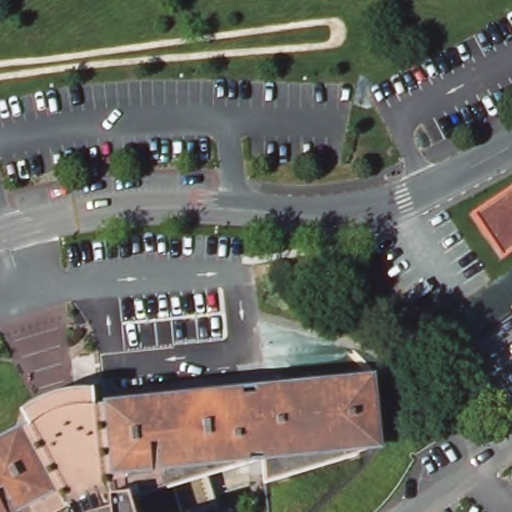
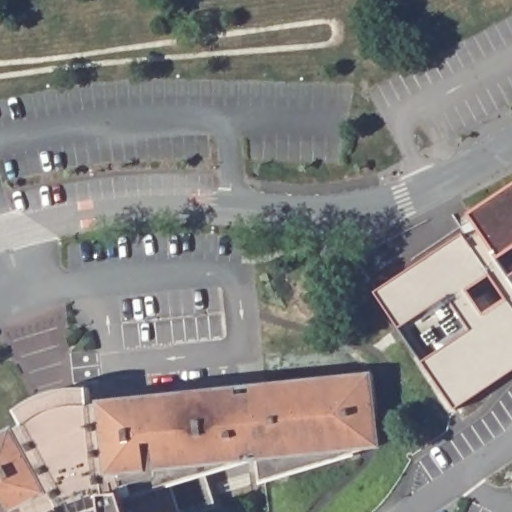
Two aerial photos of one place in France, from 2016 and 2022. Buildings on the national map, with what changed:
unchanged [(472,213),(512,187),(512,252),(502,258),(472,213)]
new [(379,290),(468,233),(471,239),(484,230),(502,258),(512,275),(512,370),(458,406),(379,290)]
demolished [(512,276),(512,280),(491,324),(430,295),(452,247),(512,276)]
unchanged [(24,431),(41,421),(87,414),(86,405),(105,403),(373,370),(380,413),(365,418),(372,445),(266,479),(257,455),(175,482),(184,512),(0,512),(0,437),(20,426),(24,431)]
unchanged [(25,417),(37,409),(39,408),(40,406),(44,403),(47,402),(50,400),(54,399),(70,396),(77,396),(80,396),(87,396),(95,397),(97,399),(104,402),(105,403),(86,405),(87,414),(41,421),(24,431),(20,426),(25,417)]

